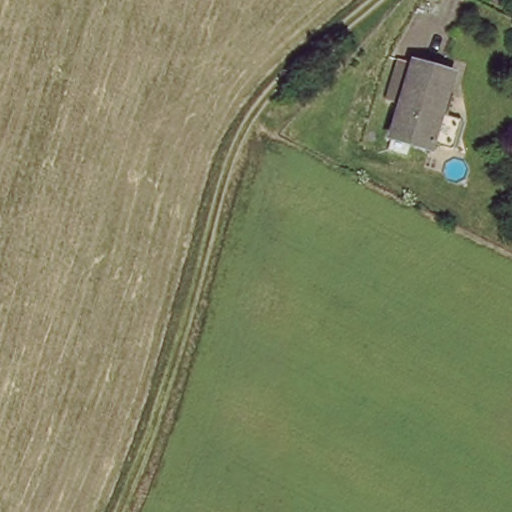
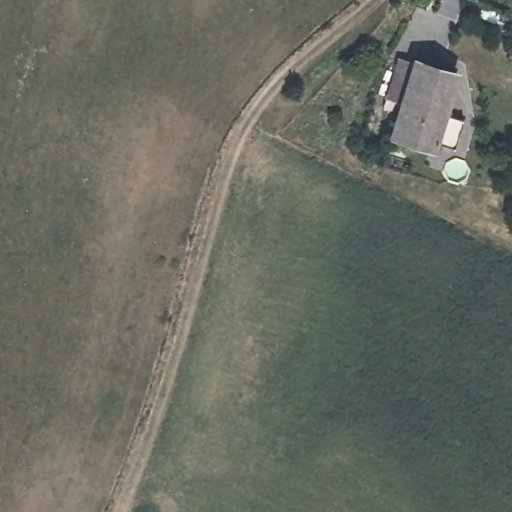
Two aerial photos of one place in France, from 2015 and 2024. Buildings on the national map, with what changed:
unchanged [(432,151),(398,140),(418,63),(454,74),(432,151)]

